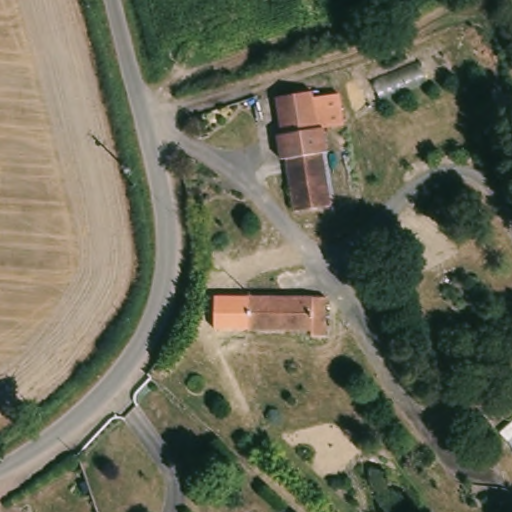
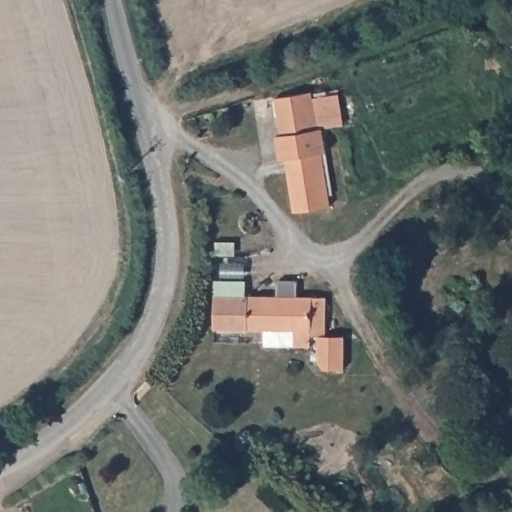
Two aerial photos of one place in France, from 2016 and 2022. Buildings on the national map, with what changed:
unchanged [(312,130),(318,128),(326,151),(320,152),(336,201),(302,209),(288,164),(281,166),(274,145),(288,141),(276,100),(301,92),(312,130)]
unchanged [(330,333),(312,335),(310,327),(249,332),(247,301),(325,293),(330,333)]

